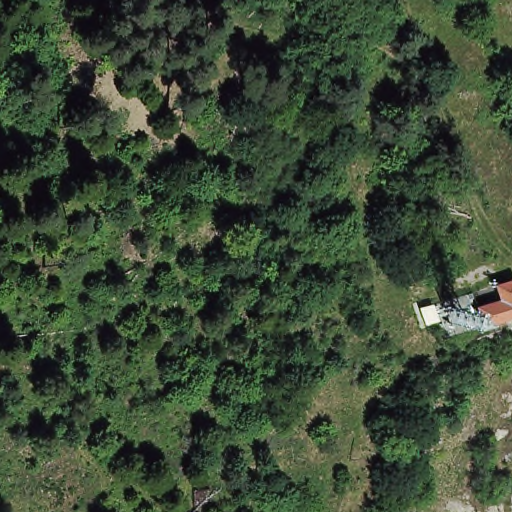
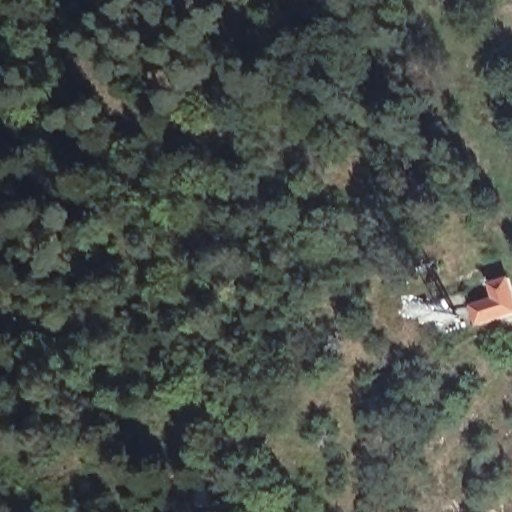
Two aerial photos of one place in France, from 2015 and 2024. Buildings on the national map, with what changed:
unchanged [(512,280),(512,316),(503,318),(477,324),(474,304),(497,299),(494,284),(512,280)]

